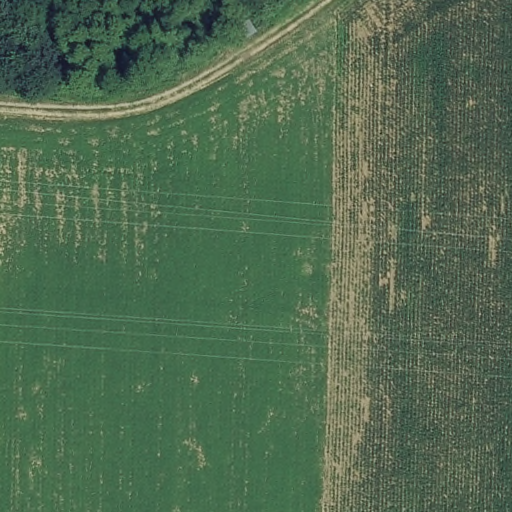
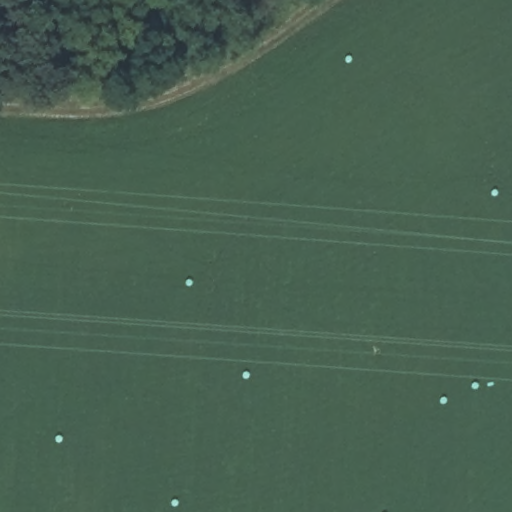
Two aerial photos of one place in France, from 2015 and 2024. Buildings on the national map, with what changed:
unchanged [(153,76),(157,91),(143,94),(138,80),(153,76)]

